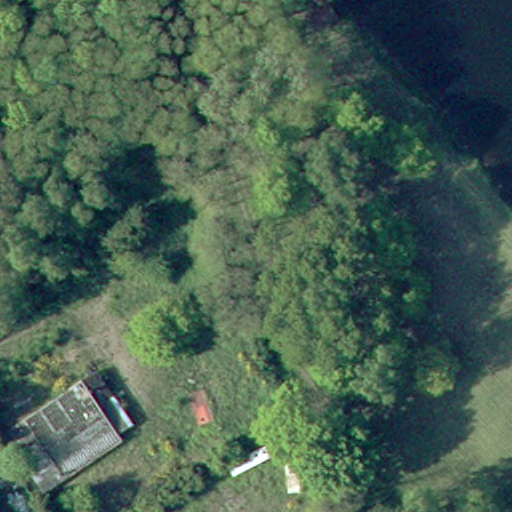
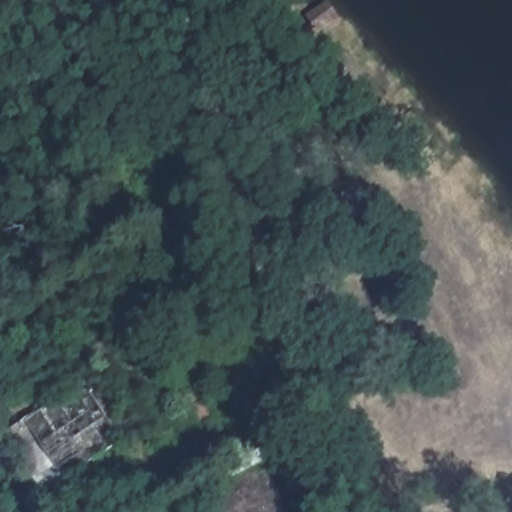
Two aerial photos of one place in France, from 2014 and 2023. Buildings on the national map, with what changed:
unchanged [(316,0),(330,17),(320,26),(305,10),(316,0)]
unchanged [(123,439),(65,479),(27,421),(84,382),(123,439)]

